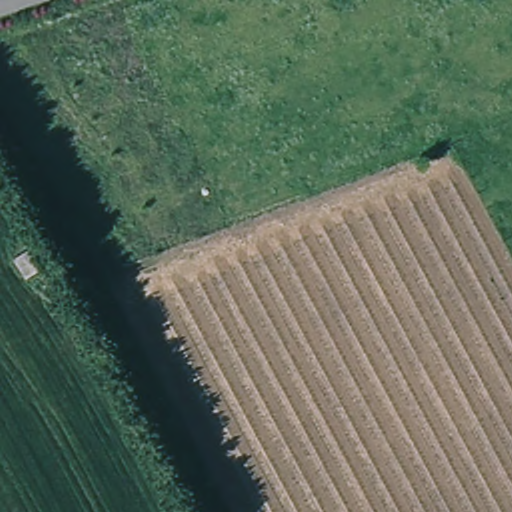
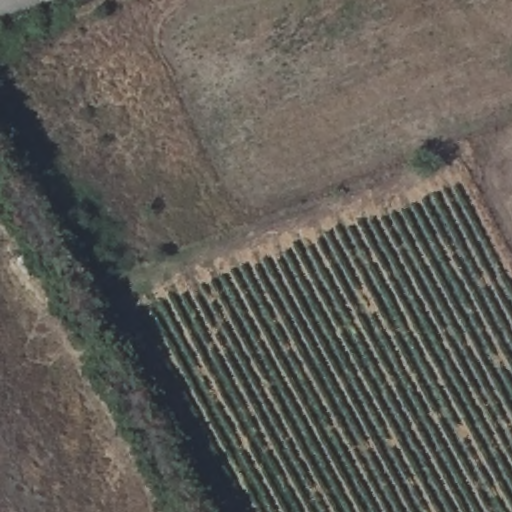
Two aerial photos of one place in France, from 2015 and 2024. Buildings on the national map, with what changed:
unchanged [(28,280),(17,261),(34,252),(47,270),(28,280)]

